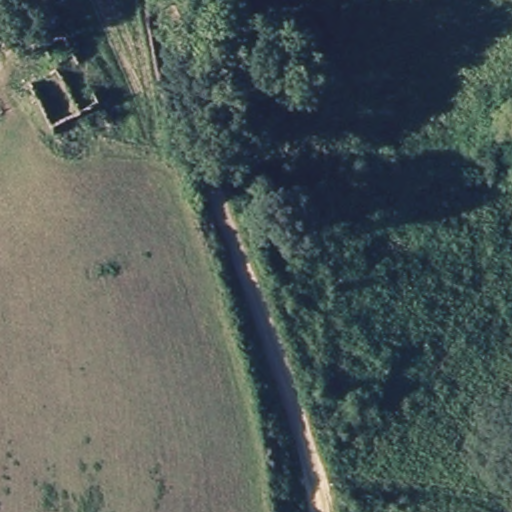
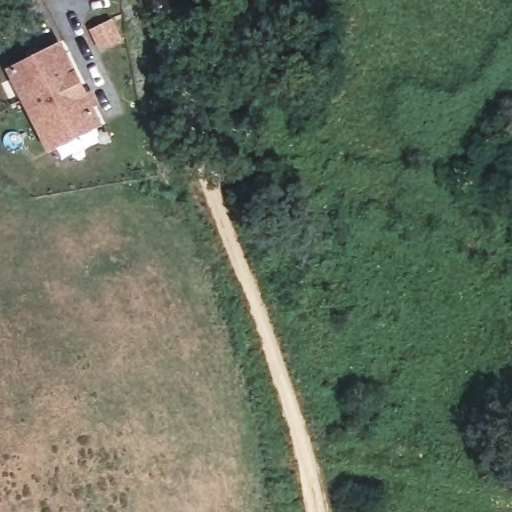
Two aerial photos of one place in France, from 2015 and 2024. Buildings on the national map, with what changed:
new [(106,126),(50,155),(7,70),(30,59),(27,50),(38,46),(41,54),(63,41),(106,126)]

